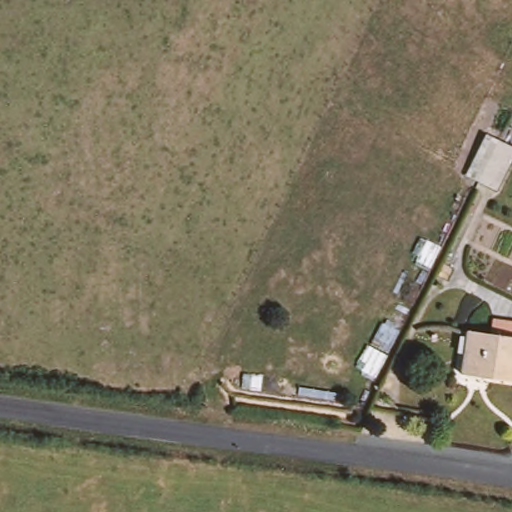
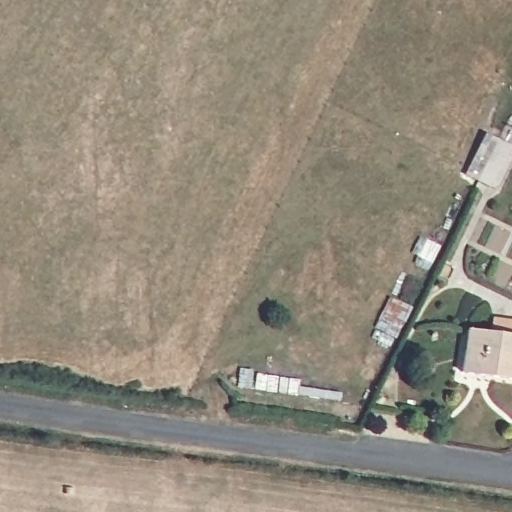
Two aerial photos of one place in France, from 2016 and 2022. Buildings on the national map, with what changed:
unchanged [(512,150),(512,152),(493,192),(476,183),(495,141),(512,150)]
unchanged [(499,314),(512,316),(512,380),(465,374),(470,331),(496,334),(499,314)]

